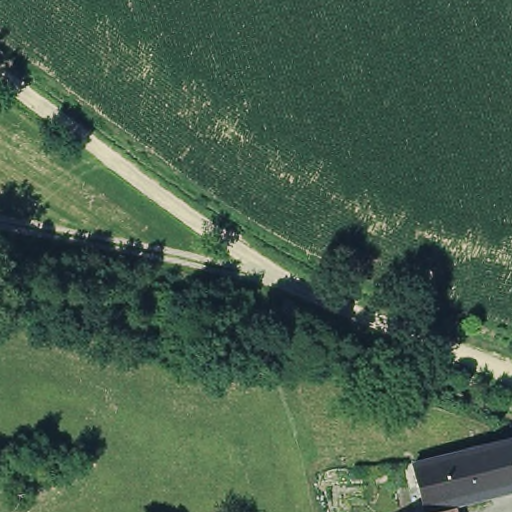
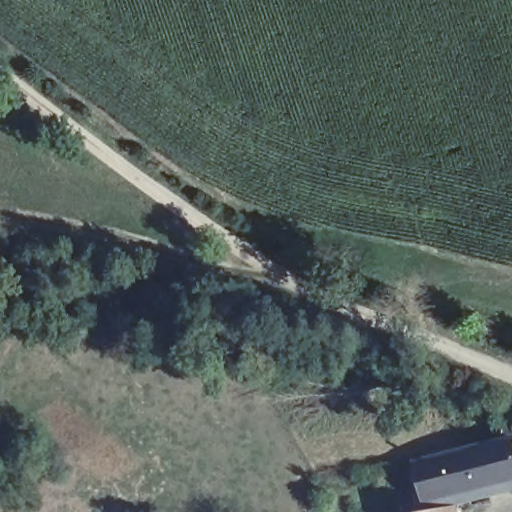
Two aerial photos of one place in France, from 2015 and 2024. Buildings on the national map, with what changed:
unchanged [(512,489),(430,508),(418,462),(512,440),(512,489)]

